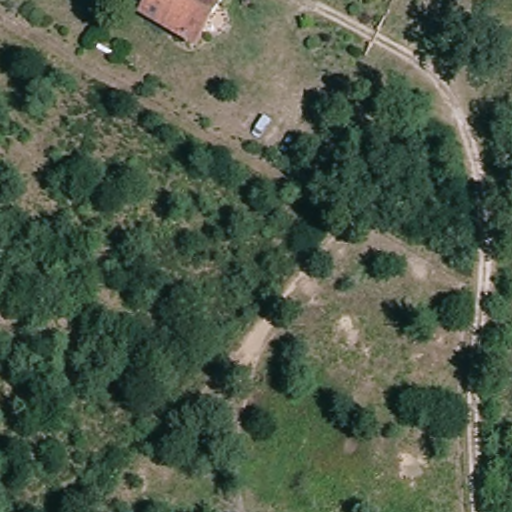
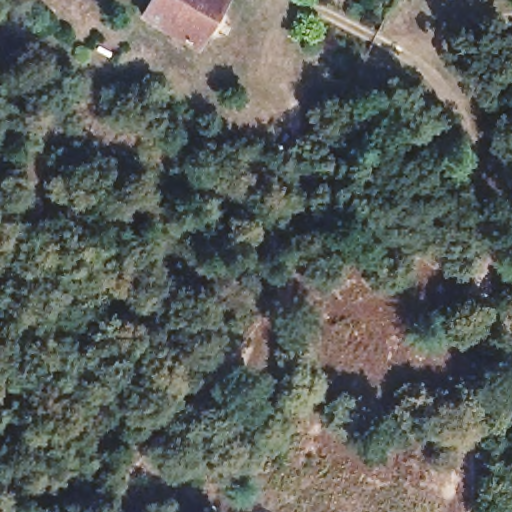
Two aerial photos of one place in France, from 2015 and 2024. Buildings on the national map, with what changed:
unchanged [(150,0),(212,0),(189,55),(137,29),(150,0)]

